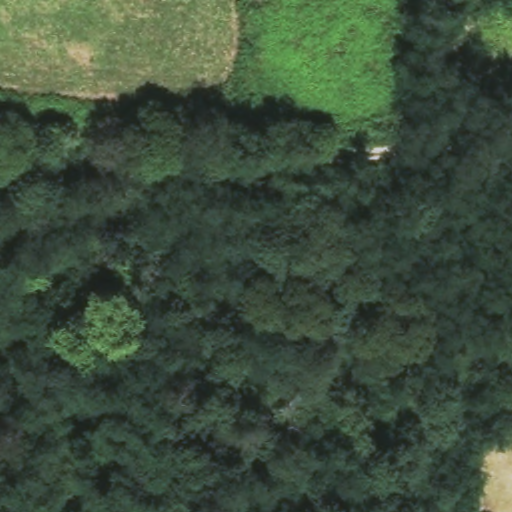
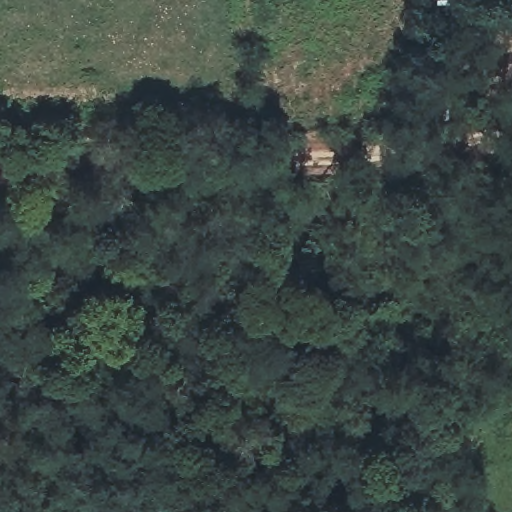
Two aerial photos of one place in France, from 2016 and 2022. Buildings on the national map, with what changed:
unchanged [(445,71),(447,119),(427,121),(427,70),(445,71)]

